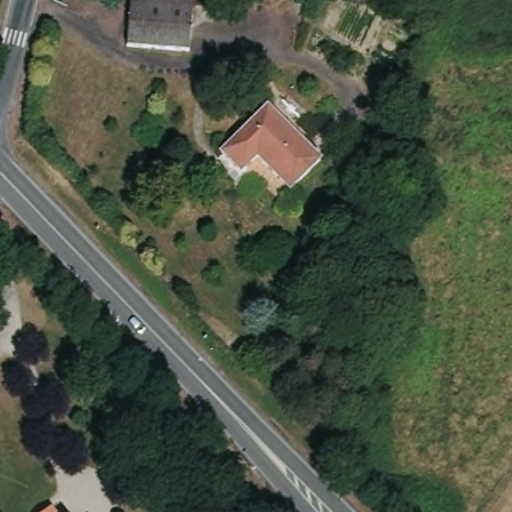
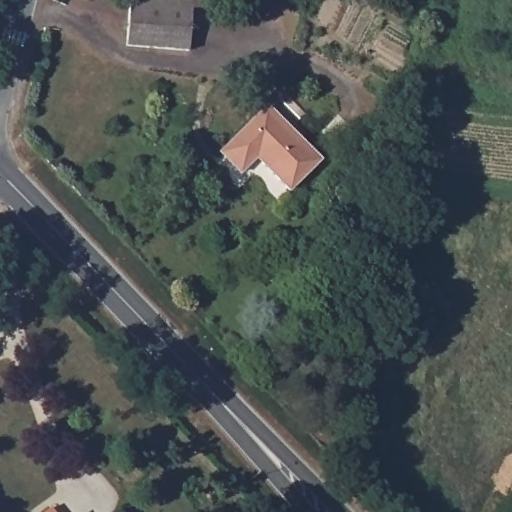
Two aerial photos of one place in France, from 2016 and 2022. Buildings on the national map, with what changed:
unchanged [(130,3),(130,0),(213,0),(212,11),(191,9),(130,3)]
unchanged [(188,51),(127,46),(130,3),(191,9),(188,51)]
unchanged [(324,157),(292,189),(257,157),(242,174),(222,152),(267,105),(324,157)]
unchanged [(66,512),(38,512),(55,498),(66,512)]
unchanged [(97,512),(91,512),(95,509),(97,512)]

